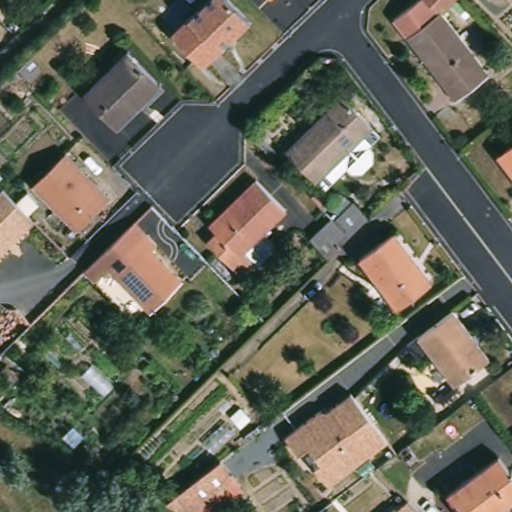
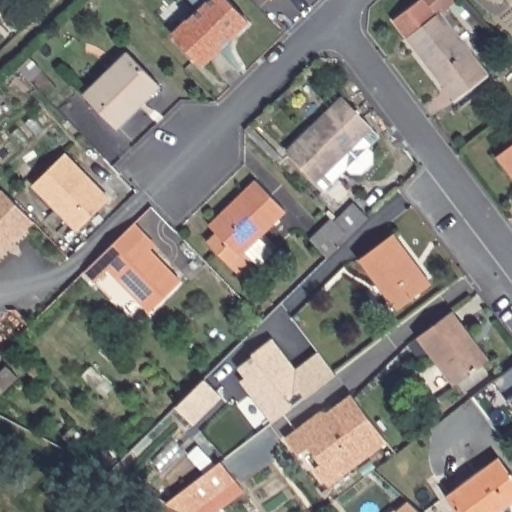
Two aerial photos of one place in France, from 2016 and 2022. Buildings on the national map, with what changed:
unchanged [(198,16),(215,0),(227,0),(249,23),(204,68),(174,37),(175,36),(165,25),(187,4),(198,16)]
unchanged [(442,14),(439,10),(434,14),(420,0),(457,0),(442,14)]
unchanged [(440,15),(486,79),(453,102),(406,39),(440,15)]
unchanged [(33,63),(23,72),(13,62),(23,53),(33,63)]
unchanged [(159,85),(114,127),(84,95),(129,53),(159,85)]
unchanged [(373,128),(317,181),(289,152),(343,99),(373,128)]
unchanged [(512,148),(512,173),(500,156),(512,148)]
unchanged [(106,198),(74,229),(30,186),(63,155),(106,198)]
unchanged [(214,233),(208,227),(254,182),(283,212),(257,237),(271,252),(256,266),(251,262),(238,275),(214,251),(205,242),(214,233)]
unchanged [(0,193),(4,197),(32,224),(10,246),(3,254),(0,257),(0,193)]
unchanged [(354,206),(367,219),(348,237),(327,258),(310,240),(331,220),(335,224),(354,206)]
unchanged [(155,247),(149,252),(179,284),(148,313),(107,271),(94,283),(82,270),(132,222),(155,247)]
unchanged [(398,232),(435,281),(389,317),(370,290),(382,280),(364,257),(398,232)]
unchanged [(453,316),(488,363),(455,388),(420,341),(453,316)]
new [(251,353),(272,338),(292,364),(295,369),(318,351),(335,373),(272,422),(240,380),(245,376),(237,367),(253,355),(251,353)]
new [(17,377),(0,394),(0,371),(6,365),(17,377)]
new [(204,378),(221,396),(193,424),(175,406),(204,378)]
unchanged [(318,409),(321,411),(347,393),(385,442),(328,489),(310,468),(315,463),(302,449),(297,454),(282,437),(318,409)]
unchanged [(512,480),(512,504),(501,512),(458,512),(448,499),(499,462),(512,480)]
unchanged [(192,512),(179,512),(164,504),(223,463),(236,481),(192,512)]
unchanged [(394,512),(387,512),(391,508),(394,512)]

